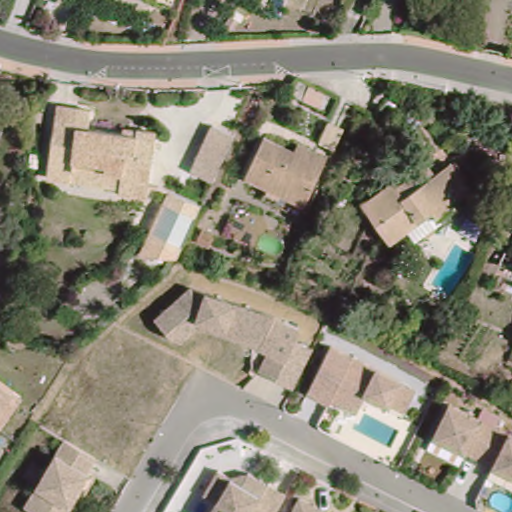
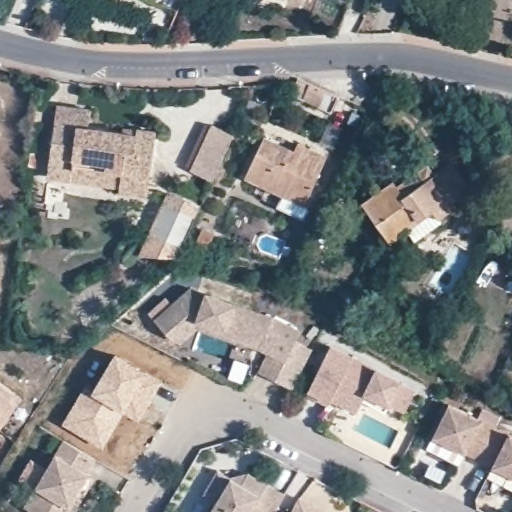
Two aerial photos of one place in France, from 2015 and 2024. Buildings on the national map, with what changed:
unchanged [(299,80),(311,87),(303,101),(292,95),(295,86),(299,80)]
unchanged [(319,107),(326,93),(337,99),(331,112),(319,107)]
unchanged [(47,180),(56,105),(91,109),(89,129),(138,135),(139,130),(156,133),(147,197),(119,192),(120,190),(70,182),(47,180)]
new [(213,131),(231,139),(210,185),(192,176),(213,131)]
unchanged [(247,187),(263,149),(293,161),(298,155),(327,168),(305,214),(302,214),(268,198),(247,187)]
unchanged [(420,239),(412,231),(396,241),(368,204),(398,182),(403,187),(432,167),(440,175),(455,164),(478,193),(442,217),(445,222),(420,239)]
unchanged [(200,206),(175,258),(141,257),(169,192),(200,206)]
demolished [(485,227),(470,219),(477,205),(492,212),(485,227)]
unchanged [(203,231),(214,235),(208,248),(197,242),(203,231)]
demolished [(511,307),(487,296),(505,260),(510,261),(512,262),(512,305),(511,307)]
unchanged [(255,363),(266,342),(193,319),(175,334),(164,330),(150,312),(186,282),(271,310),(297,322),(292,332),(308,341),(289,380),(272,372),(255,363)]
unchanged [(414,389),(403,414),(389,407),(383,415),(358,404),(353,412),(331,402),(328,406),(305,396),(328,344),(414,389)]
new [(81,390),(89,393),(114,352),(162,381),(139,421),(123,412),(102,447),(60,425),(81,390)]
unchanged [(0,420),(0,388),(16,400),(0,420)]
unchanged [(428,440),(434,428),(450,396),(495,418),(480,451),(466,445),(460,456),(428,440)]
unchanged [(487,469),(492,457),(480,451),(495,418),(512,427),(512,481),(487,469)]
unchanged [(96,450),(87,465),(95,468),(68,512),(48,512),(26,498),(65,432),(96,450)]
unchanged [(203,510),(212,493),(200,486),(214,462),(237,476),(244,464),(281,486),(265,512),(201,512),(203,510)]
unchanged [(327,512),(291,512),(301,494),(329,508),(327,512)]

